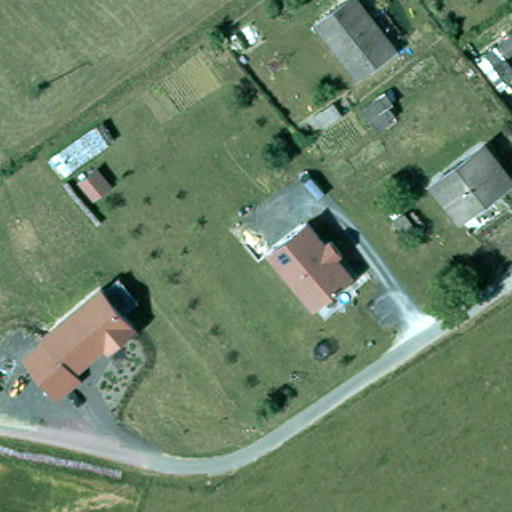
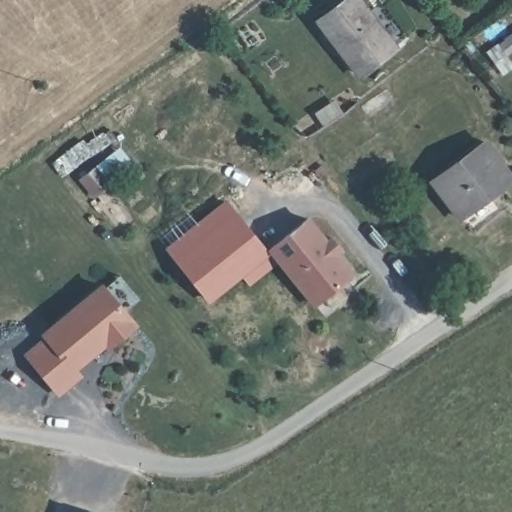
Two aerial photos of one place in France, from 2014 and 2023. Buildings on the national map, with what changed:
unchanged [(357,0),(392,48),(357,74),(317,21),(345,0),(357,0)]
unchanged [(507,56),(512,63),(512,82),(501,90),(476,57),(512,29),(512,52),(507,56)]
demolished [(385,89),(393,101),(390,103),(395,112),(375,127),(360,107),(385,89)]
unchanged [(485,144),(512,180),(459,219),(431,182),(485,144)]
new [(280,263),(250,287),(242,277),(210,302),(165,249),(227,197),(267,246),(280,263)]
unchanged [(403,210),(412,222),(401,231),(392,217),(403,210)]
unchanged [(326,289),(333,301),(318,312),(267,246),(307,217),(323,240),(328,236),(335,246),(332,248),(348,272),(326,289)]
unchanged [(22,351),(42,337),(38,332),(103,282),(137,324),(107,349),(103,345),(75,370),(82,377),(58,395),(22,351)]
new [(75,512),(59,512),(60,507),(75,512)]

